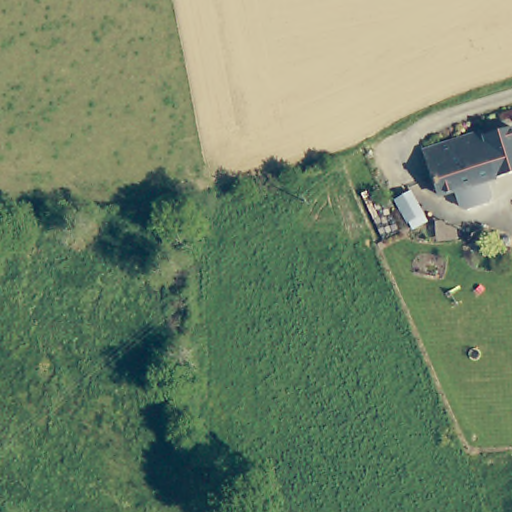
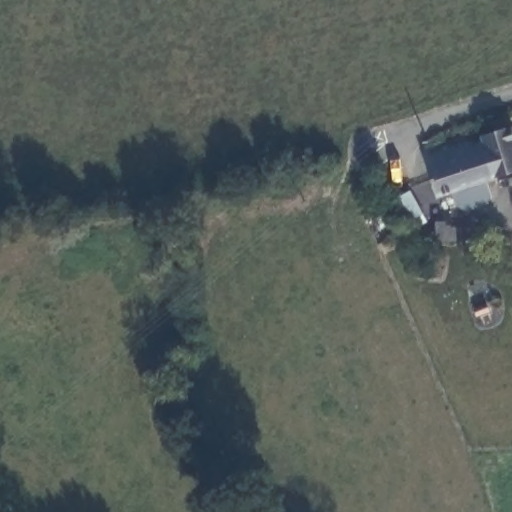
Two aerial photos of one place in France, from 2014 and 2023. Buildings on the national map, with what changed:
unchanged [(512,123),(512,124),(512,173),(499,178),(482,133),(512,123)]
unchanged [(499,178),(440,197),(425,153),(482,133),(499,178)]
unchanged [(493,198),(490,204),(466,212),(458,207),(454,192),(487,182),(493,198)]
unchanged [(433,229),(419,234),(405,205),(420,199),(433,229)]

